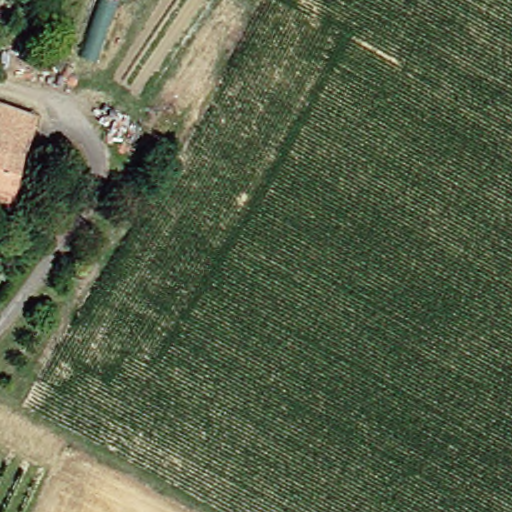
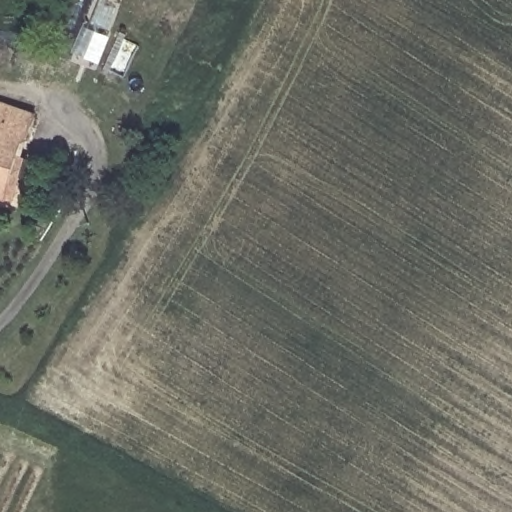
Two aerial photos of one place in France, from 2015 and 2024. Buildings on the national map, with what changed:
unchanged [(8,202),(0,200),(0,106),(28,115),(20,140),(17,139),(11,157),(21,160),(8,202)]

